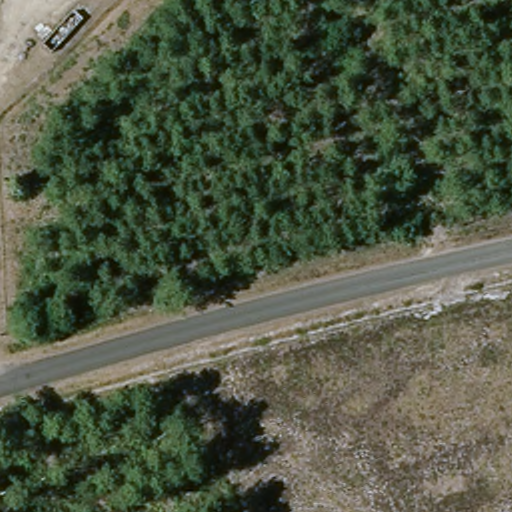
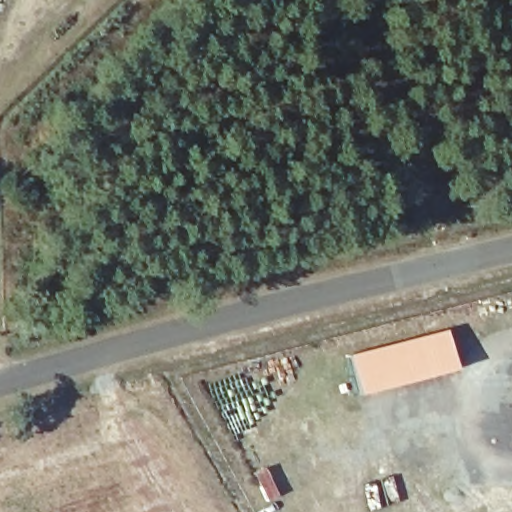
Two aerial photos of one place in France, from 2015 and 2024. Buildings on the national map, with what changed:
new [(447,332),(457,371),(359,396),(350,357),(447,332)]

